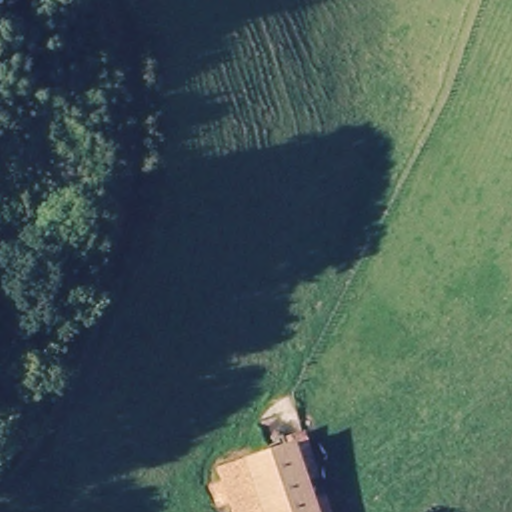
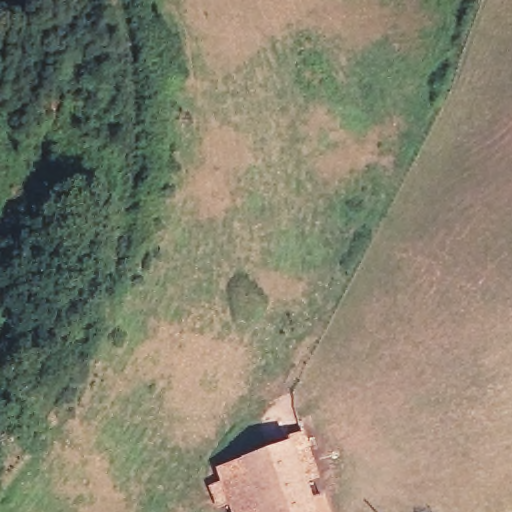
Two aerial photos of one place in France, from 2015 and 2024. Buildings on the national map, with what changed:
unchanged [(223,460),(297,441),(313,512),(236,512),(223,460)]

